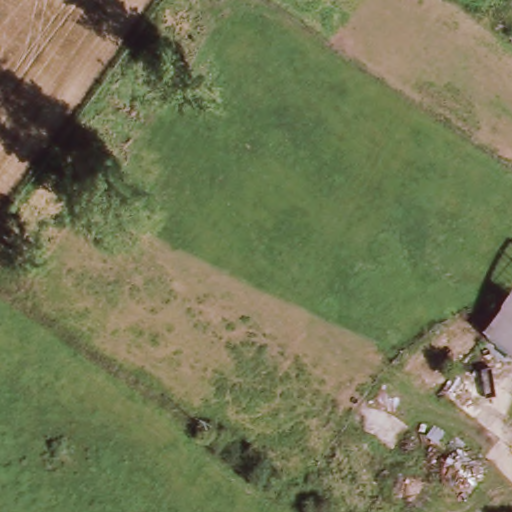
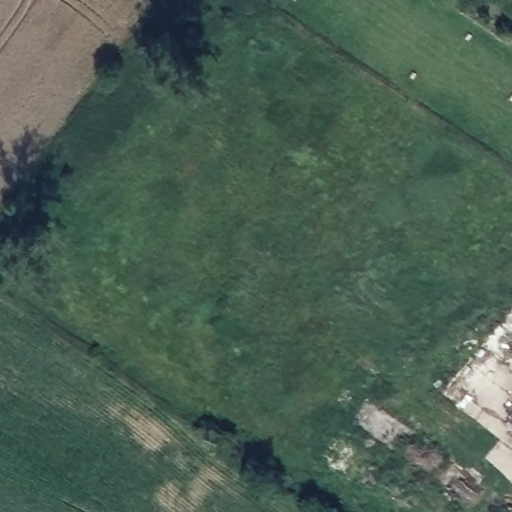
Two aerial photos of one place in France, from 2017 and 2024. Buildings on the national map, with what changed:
demolished [(488,336),(512,306),(512,357),(488,336)]

